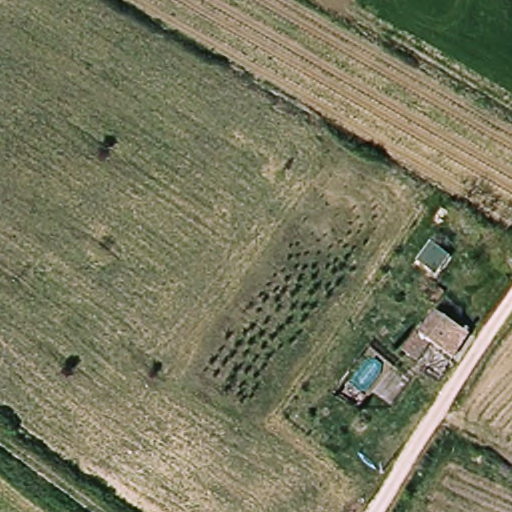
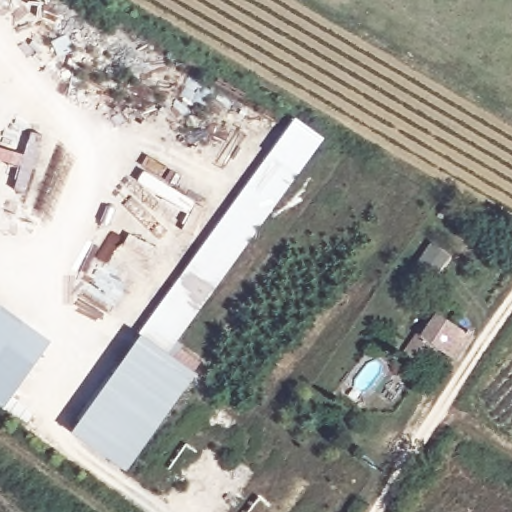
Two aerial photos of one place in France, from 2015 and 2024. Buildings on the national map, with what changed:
new [(293,121),(320,140),(174,344),(199,362),(195,373),(140,334),(293,121)]
new [(30,132),(42,136),(26,193),(14,189),(20,166),(0,160),(0,148),(24,155),(30,132)]
unchanged [(440,273),(423,263),(434,246),(450,257),(440,273)]
new [(0,303),(50,339),(3,404),(0,402),(0,303)]
unchanged [(431,349),(420,366),(409,359),(437,315),(465,332),(448,359),(431,349)]
new [(140,334),(195,373),(125,469),(72,431),(140,334)]

